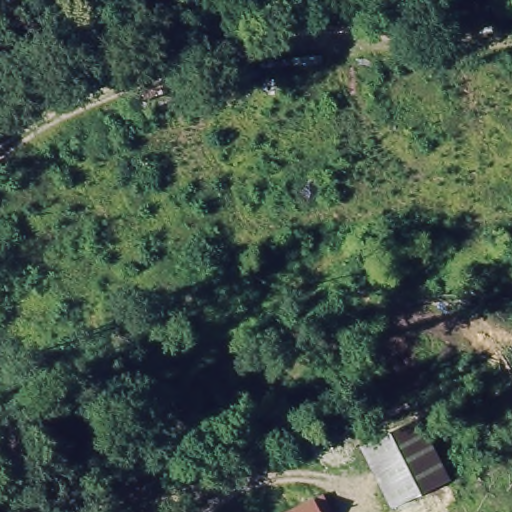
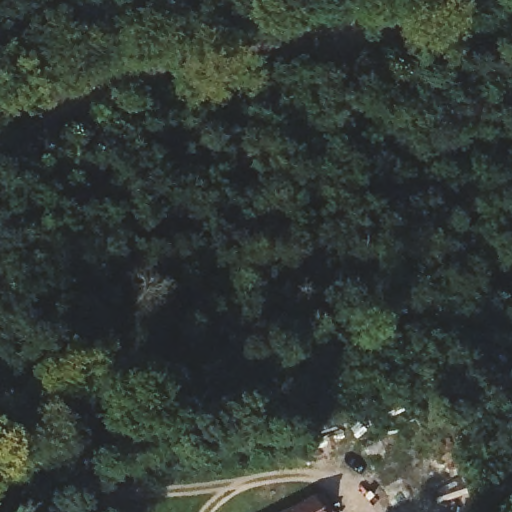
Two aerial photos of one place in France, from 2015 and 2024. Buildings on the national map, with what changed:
new [(419,419),(450,478),(391,509),(358,447),(419,419)]
new [(331,512),(285,512),(313,498),(323,495),(331,512)]
demolished [(304,512),(285,512),(300,504),(304,512)]

